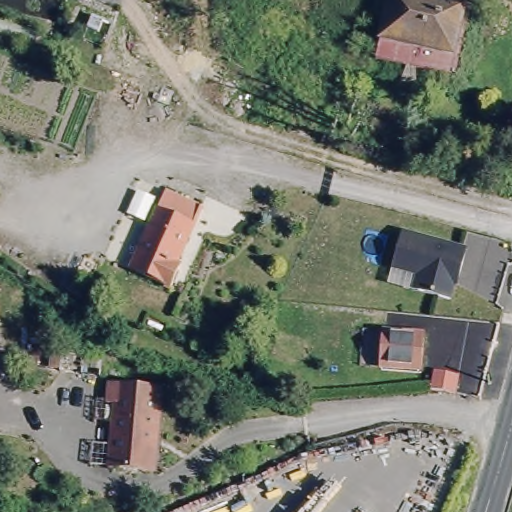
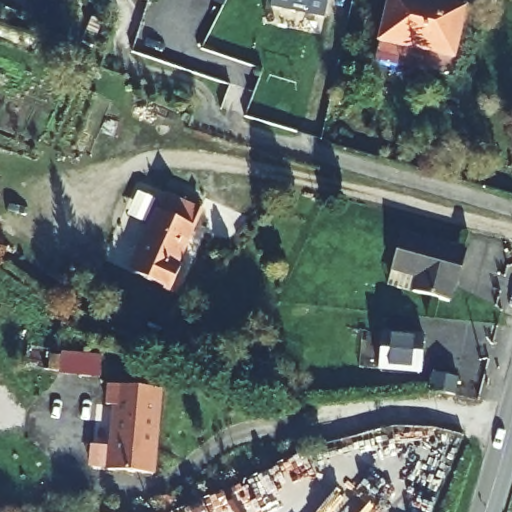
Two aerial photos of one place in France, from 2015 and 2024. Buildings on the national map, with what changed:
new [(214,0),(226,0),(224,5),(214,0)]
new [(328,0),(325,19),(271,9),(273,0),(328,0)]
unchanged [(451,68),(379,52),(388,0),(464,0),(467,0),(451,68)]
unchanged [(157,194),(190,206),(171,261),(175,263),(166,286),(129,271),(157,194)]
unchanged [(389,270),(396,234),(466,250),(453,302),(411,291),(385,285),(389,270)]
unchanged [(384,335),(425,338),(424,361),(423,374),(381,370),(383,351),(384,335)]
unchanged [(104,355),(103,376),(60,375),(63,353),(104,355)]
unchanged [(435,378),(459,378),(459,395),(450,395),(435,395),(435,378)]
unchanged [(164,389),(157,476),(113,473),(118,406),(111,406),(112,385),(164,389)]

